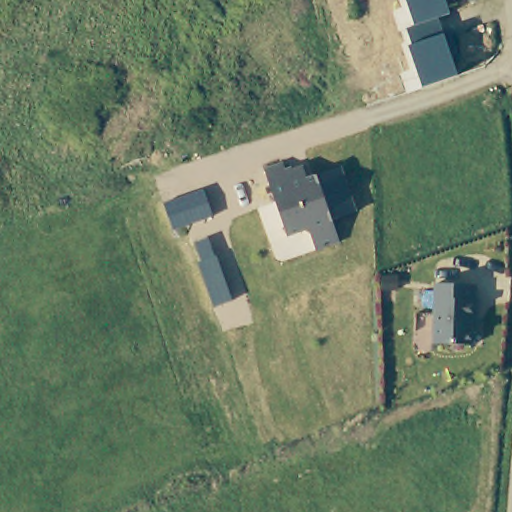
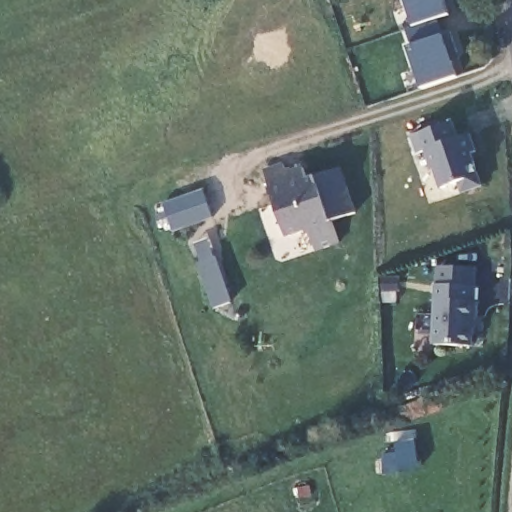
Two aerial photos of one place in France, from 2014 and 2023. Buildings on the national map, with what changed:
unchanged [(439,19),(458,77),(422,89),(408,47),(412,45),(407,29),(415,26),(405,0),(445,0),(450,15),(439,19)]
new [(459,182),(441,189),(435,169),(431,170),(425,151),(418,154),(411,135),(455,120),(460,137),(471,134),(477,151),(472,153),(483,185),(463,192),(459,182)]
unchanged [(271,182),(265,163),(283,156),(286,166),(303,160),(307,172),(341,161),(357,206),(333,215),(341,235),(316,244),(310,227),(304,224),(287,230),(271,182)]
unchanged [(210,214),(170,228),(161,202),(201,188),(210,214)]
unchanged [(215,304),(194,240),(210,234),(232,298),(215,304)]
unchanged [(433,348),(442,282),(482,280),(480,309),(482,310),(480,327),(477,327),(474,354),(433,348)]

